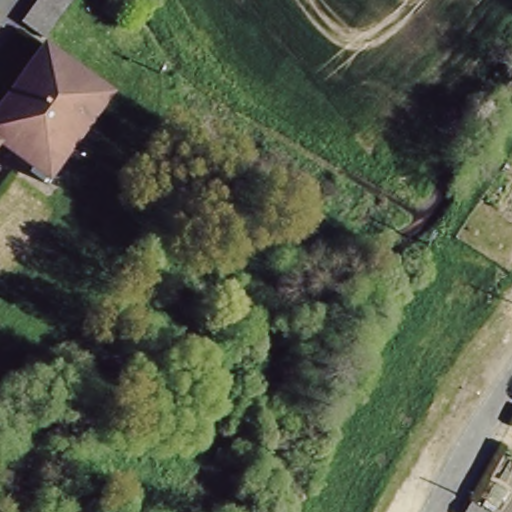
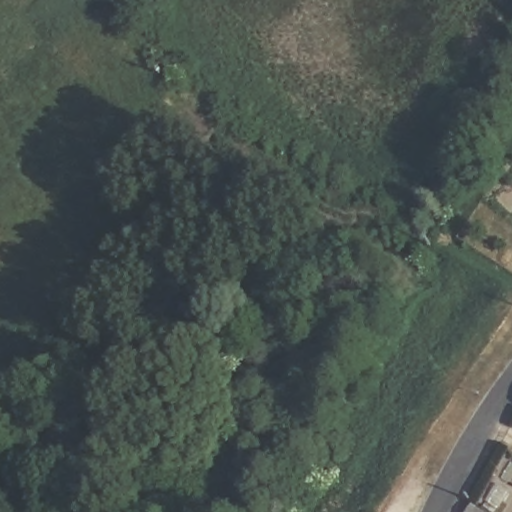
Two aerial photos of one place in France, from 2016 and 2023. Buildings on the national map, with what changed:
demolished [(42,40),(21,25),(39,0),(70,0),(42,40)]
demolished [(22,81),(18,79),(41,47),(59,60),(54,68),(85,91),(90,84),(111,100),(89,130),(83,126),(65,152),(65,153),(70,156),(48,185),(29,170),(35,163),(5,141),(1,139),(0,140),(0,104),(4,106),(22,81)]

